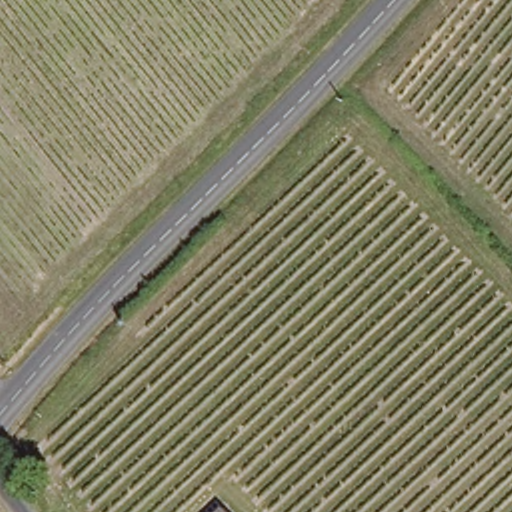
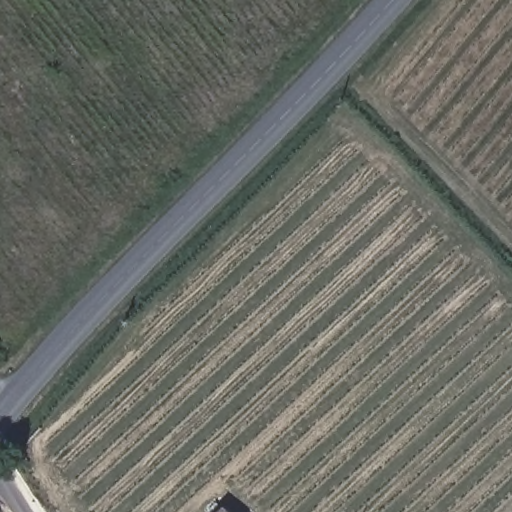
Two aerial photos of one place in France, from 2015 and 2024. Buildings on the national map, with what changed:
unchanged [(224,509),(226,512),(220,512),(224,509)]

